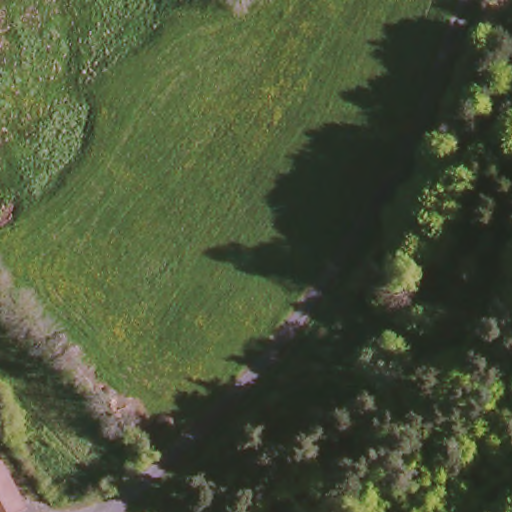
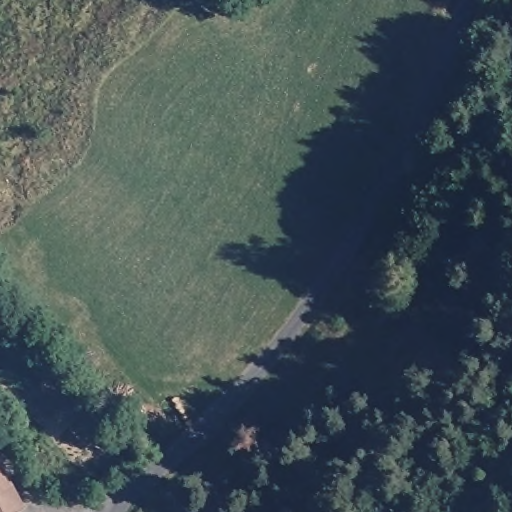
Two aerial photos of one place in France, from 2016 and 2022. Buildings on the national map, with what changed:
unchanged [(0,473),(20,512),(0,512),(0,473)]

